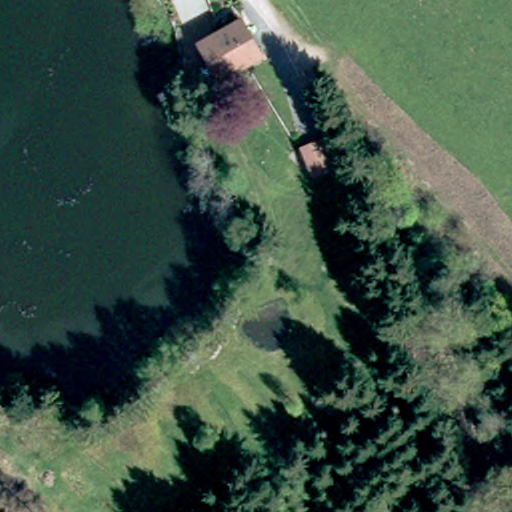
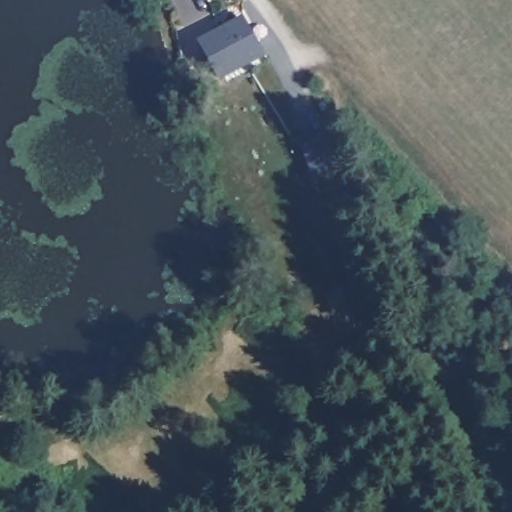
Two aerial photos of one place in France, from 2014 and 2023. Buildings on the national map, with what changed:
unchanged [(246,25),(258,50),(213,70),(202,46),(217,40),(213,32),(240,19),(243,18),(246,25)]
unchanged [(311,166),(328,160),(334,159),(343,186),(337,187),(320,193),(311,166)]

